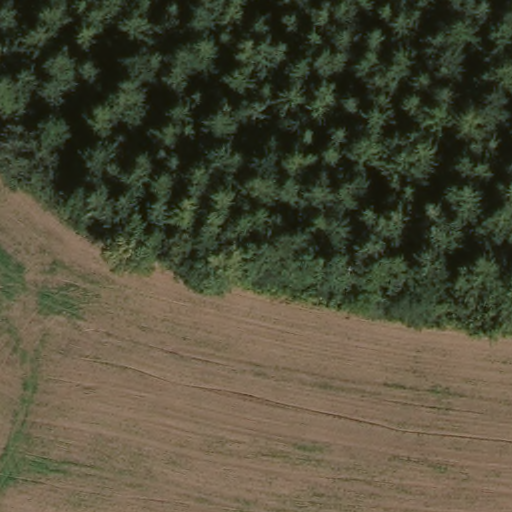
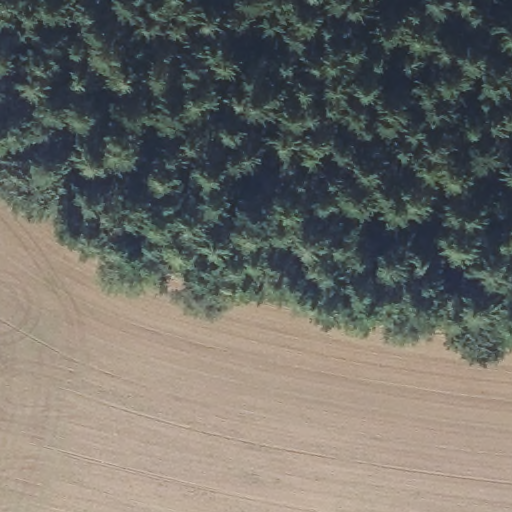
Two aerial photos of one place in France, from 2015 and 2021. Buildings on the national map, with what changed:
[]

